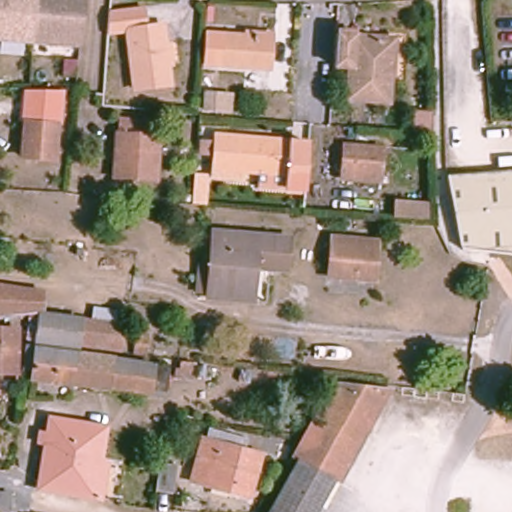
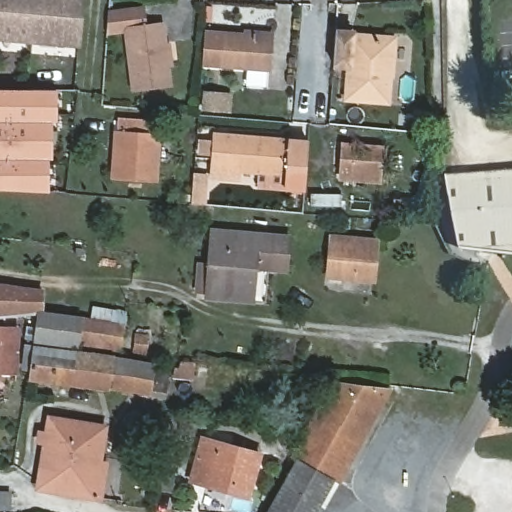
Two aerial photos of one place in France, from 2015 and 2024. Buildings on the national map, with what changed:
unchanged [(49,44),(35,43),(0,40),(0,0),(85,0),(79,46),(49,44)]
unchanged [(169,83),(133,87),(125,29),(161,24),(169,83)]
unchanged [(202,42),(203,33),(269,38),(267,68),(201,63),(202,42)]
unchanged [(394,38),(388,102),(346,98),(348,65),(333,63),(335,33),(394,38)]
new [(56,122),(51,121),(53,159),(47,159),(48,192),(0,189),(0,89),(56,90),(56,122)]
unchanged [(231,94),(229,116),(219,115),(197,113),(197,109),(199,92),(231,94)]
unchanged [(413,132),(415,111),(430,112),(430,133),(413,132)]
unchanged [(154,135),(159,135),(156,178),(111,175),(115,132),(117,133),(118,117),(155,120),(154,135)]
demolished [(49,162),(17,160),(20,125),(21,125),(52,128),(49,162)]
unchanged [(299,175),(212,167),(214,135),(301,143),(299,175)]
unchanged [(379,182),(367,181),(341,179),(343,143),(370,145),(382,146),(379,182)]
unchanged [(465,247),(453,177),(512,173),(512,253),(465,247)]
unchanged [(427,217),(394,215),(395,199),(428,202),(427,217)]
unchanged [(209,266),(213,231),(221,231),(273,236),(288,238),(285,268),(270,266),(255,265),(251,301),(206,298),(207,292),(197,291),(200,265),(209,266)]
unchanged [(372,281),(326,277),(330,241),(376,244),(372,281)]
unchanged [(39,312),(22,314),(0,317),(0,285),(39,290),(39,312)]
unchanged [(124,323),(122,334),(120,350),(79,344),(79,346),(34,340),(39,312),(83,318),(124,323)]
unchanged [(0,372),(0,328),(17,329),(15,373),(0,372)]
unchanged [(134,355),(137,334),(148,335),(145,356),(134,355)]
unchanged [(120,357),(170,368),(165,396),(136,393),(28,378),(29,371),(22,370),(25,345),(33,346),(113,356),(120,357)]
unchanged [(194,362),(193,377),(175,375),(176,360),(194,362)]
unchanged [(208,376),(197,375),(199,365),(209,366),(208,376)]
unchanged [(338,487),(333,484),(318,512),(270,512),(296,465),(292,462),(332,388),(388,396),(338,487)]
unchanged [(99,463),(106,464),(100,499),(38,488),(49,418),(105,427),(99,463)]
unchanged [(246,496),(191,479),(203,440),(259,458),(246,496)]
unchanged [(176,457),(172,492),(155,490),(159,455),(176,457)]
demolished [(415,483),(401,510),(374,496),(387,470),(415,483)]
unchanged [(0,512),(0,497),(9,497),(9,512),(0,512)]

